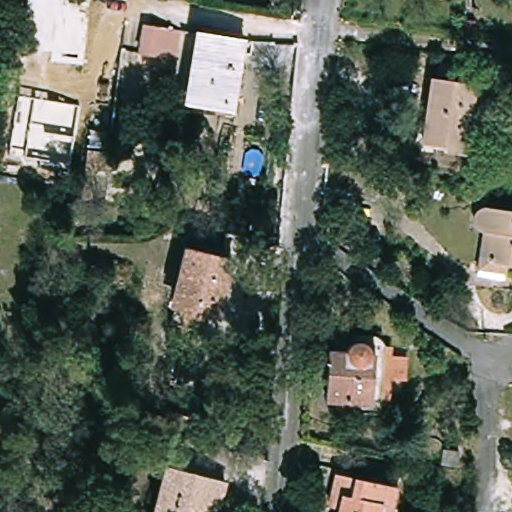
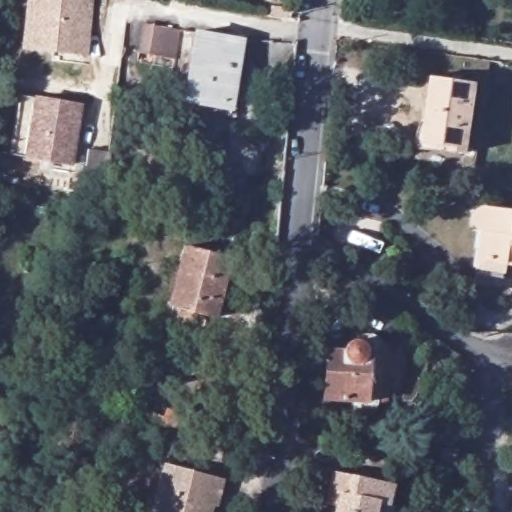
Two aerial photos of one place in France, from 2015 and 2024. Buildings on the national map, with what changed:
new [(88,57),(20,50),(25,0),(93,0),(88,57)]
unchanged [(178,31),(174,57),(139,52),(143,26),(178,31)]
unchanged [(242,42),(231,111),(186,103),(197,34),(242,42)]
unchanged [(427,123),(432,77),(475,83),(466,154),(449,152),(450,147),(430,145),(424,144),(427,123)]
new [(73,167),(23,159),(32,96),(83,104),(73,167)]
new [(94,152),(114,156),(110,205),(89,200),(94,152)]
unchanged [(483,235),(479,235),(477,234),(476,233),(475,231),(474,230),(473,228),(472,227),(472,225),(472,223),(472,221),(472,220),(474,218),(475,217),(475,215),(477,214),(478,213),(480,212),(482,212),(483,211),(485,211),(487,211),(512,215),(512,268),(507,267),(505,278),(479,274),(483,235)]
unchanged [(218,319),(172,307),(183,270),(179,269),(184,249),(231,260),(218,319)]
unchanged [(318,401),(322,353),(341,354),(341,353),(342,352),(342,350),(343,350),(343,349),(344,348),(345,347),(347,346),(348,346),(350,345),(351,345),(379,347),(374,406),(318,401)]
unchanged [(224,481),(216,507),(212,506),(210,512),(162,512),(153,509),(165,464),(224,481)]
unchanged [(389,505),(387,512),(336,512),(337,507),(328,504),(330,493),(334,473),(393,486),(389,505)]

